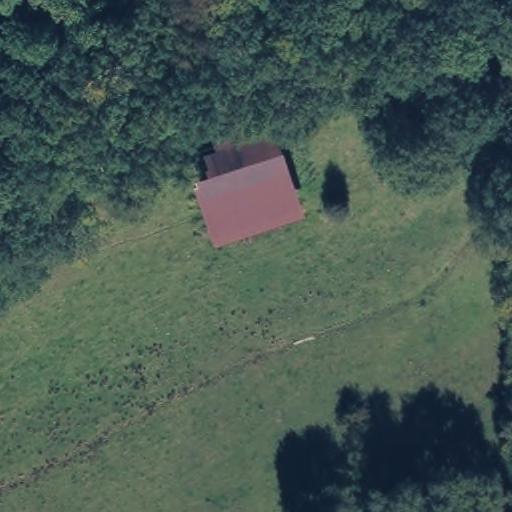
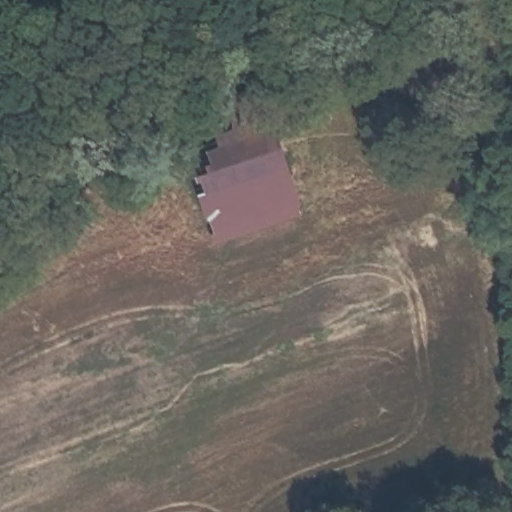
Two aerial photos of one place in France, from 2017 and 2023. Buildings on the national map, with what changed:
unchanged [(194,132),(267,108),(272,121),(304,212),(226,237),(202,157),(194,132)]

